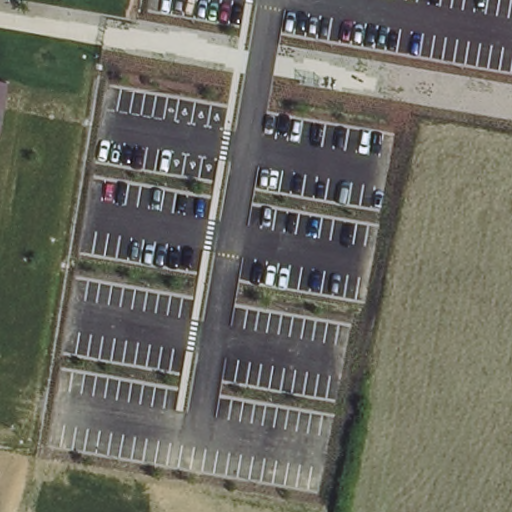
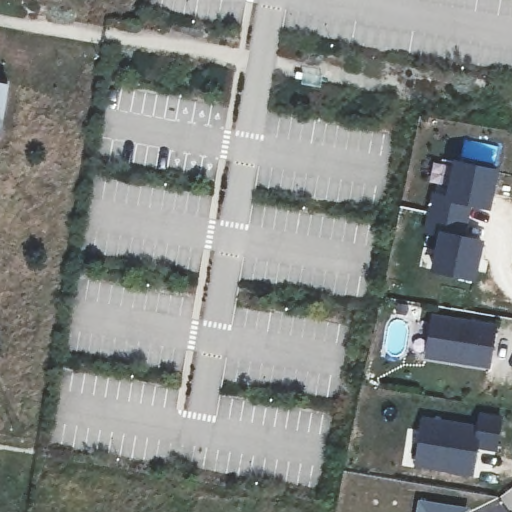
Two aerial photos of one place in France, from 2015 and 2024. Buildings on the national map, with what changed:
unchanged [(0,135),(0,83),(9,84),(0,135)]
new [(475,280),(430,271),(437,235),(422,232),(432,192),(445,194),(453,160),(499,169),(491,211),(469,206),(462,235),(484,241),(475,280)]
new [(495,327),(489,364),(428,354),(434,317),(495,327)]
new [(413,466),(421,415),(476,425),(478,411),(502,416),(495,452),(478,447),(472,476),(413,466)]
new [(467,508),(466,512),(413,512),(415,501),(467,508)]

